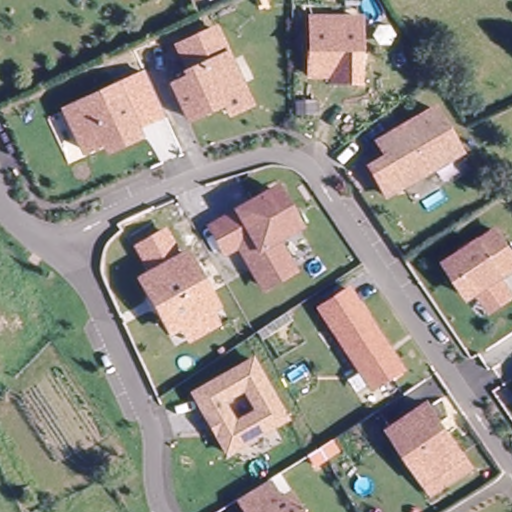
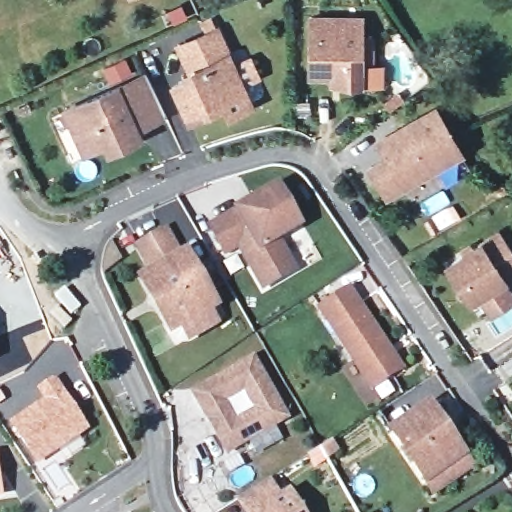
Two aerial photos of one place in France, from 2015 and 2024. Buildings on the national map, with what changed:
unchanged [(312,77),(311,20),(361,19),(362,84),(342,84),(342,76),(312,77)]
unchanged [(217,25),(251,99),(230,108),(225,96),(189,113),(175,81),(194,72),(180,42),(217,25)]
unchanged [(145,73),(165,117),(136,129),(117,87),(145,73)]
unchanged [(104,141),(84,150),(66,110),(117,87),(136,129),(139,135),(121,144),(107,150),(104,141)]
unchanged [(410,182),(387,196),(371,168),(387,157),(378,142),(434,109),(460,152),(410,182)]
unchanged [(277,185),(297,222),(276,235),(293,266),(265,282),(240,240),(226,247),(212,222),(277,185)]
unchanged [(492,308),(481,290),(477,293),(466,277),(456,261),(455,259),(502,227),(512,242),(512,270),(507,273),(512,282),(512,295),(492,308)]
unchanged [(177,325),(167,331),(157,315),(148,297),(138,280),(149,274),(134,247),(160,232),(176,260),(182,256),(211,306),(204,310),(211,323),(185,338),(177,325)]
unchanged [(402,371),(372,391),(319,311),(348,291),(402,371)]
unchanged [(194,393),(252,360),(287,419),(227,452),(194,393)]
new [(87,429),(37,465),(9,420),(42,397),(36,387),(56,375),(87,429)]
unchanged [(468,462),(431,487),(397,437),(435,412),(468,462)]
new [(0,500),(0,478),(4,499),(0,500)]
unchanged [(299,512),(249,512),(240,498),(267,481),(280,501),(290,496),(299,512)]

